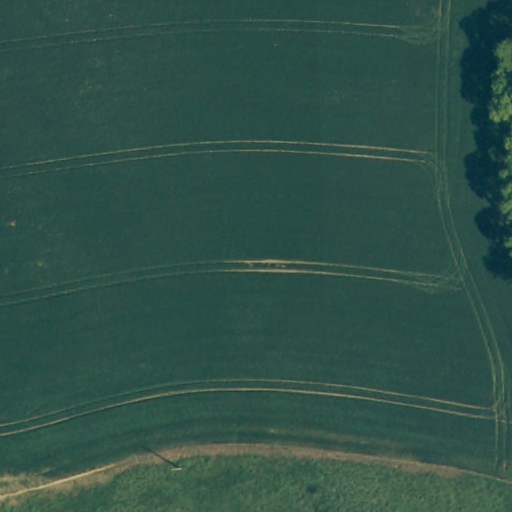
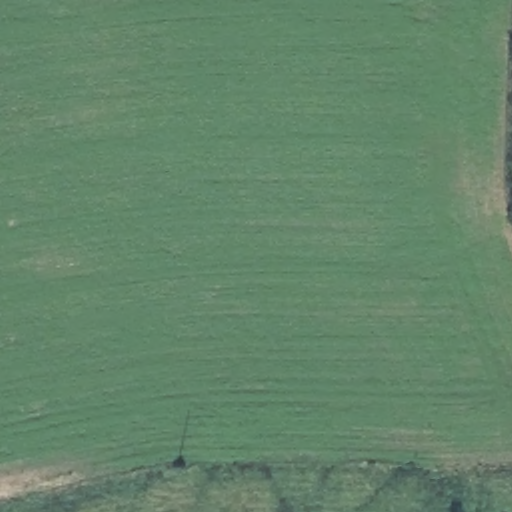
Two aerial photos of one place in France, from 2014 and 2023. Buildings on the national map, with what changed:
[]

